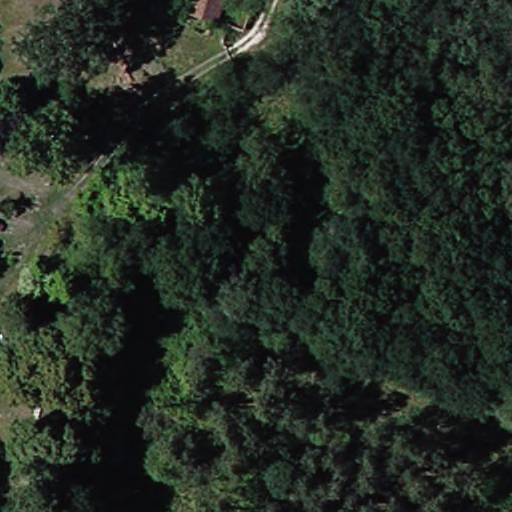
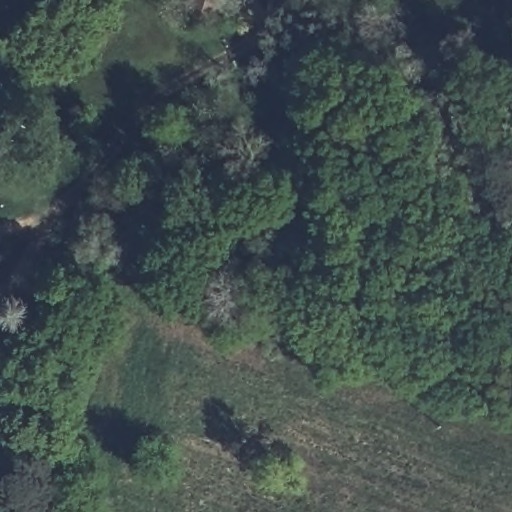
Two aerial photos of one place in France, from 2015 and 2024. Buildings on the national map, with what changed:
unchanged [(204,9),(207,0),(231,0),(225,17),(204,9)]

